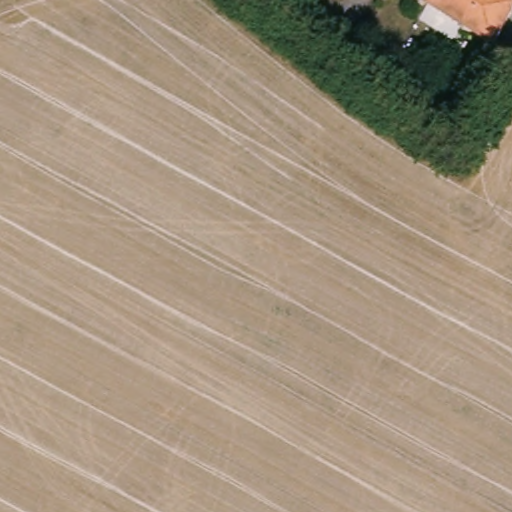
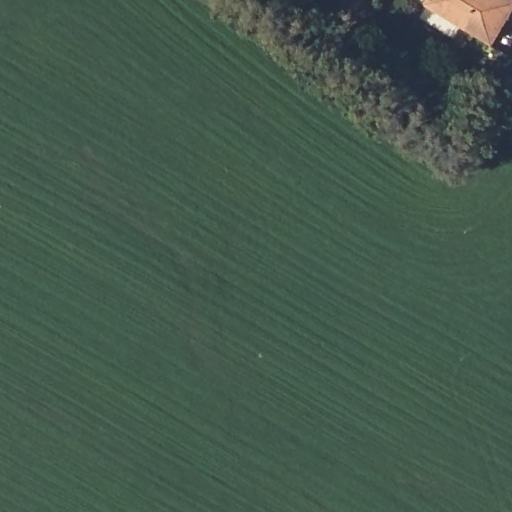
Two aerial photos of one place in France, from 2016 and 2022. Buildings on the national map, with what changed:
unchanged [(512,4),(489,43),(425,3),(427,0),(512,0),(512,4)]

